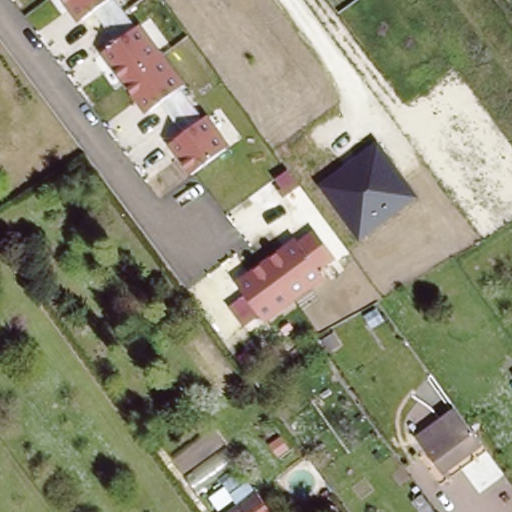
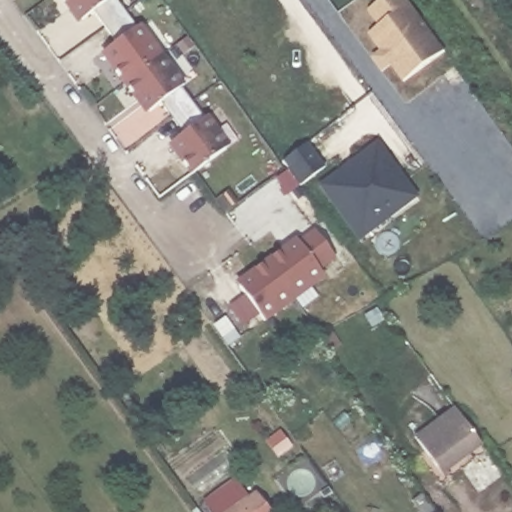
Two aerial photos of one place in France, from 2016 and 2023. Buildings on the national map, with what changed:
unchanged [(56,0),(110,0),(75,25),(56,0)]
new [(392,67),(383,72),(372,57),(380,51),(369,35),(378,27),(368,12),(385,0),(408,0),(445,52),(404,83),(392,67)]
unchanged [(140,24),(185,86),(146,116),(98,56),(140,24)]
unchanged [(167,142),(207,115),(230,147),(191,176),(167,142)]
unchanged [(318,183),(378,139),(419,198),(360,240),(318,183)]
unchanged [(230,307),(247,294),(237,282),(295,238),(298,242),(315,229),(335,260),(320,271),(325,279),(266,322),(262,316),(245,328),(230,307)]
unchanged [(437,467),(415,437),(455,409),(481,445),(458,462),(442,473),(437,467)]
unchanged [(422,512),(413,500),(422,493),(436,512),(422,512)]
unchanged [(269,512),(241,512),(240,511),(258,497),(269,512)]

